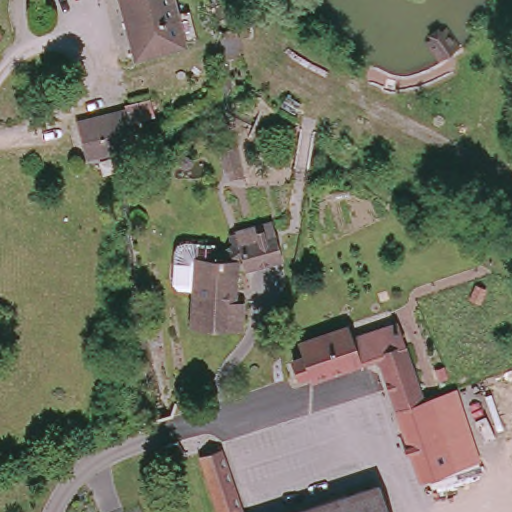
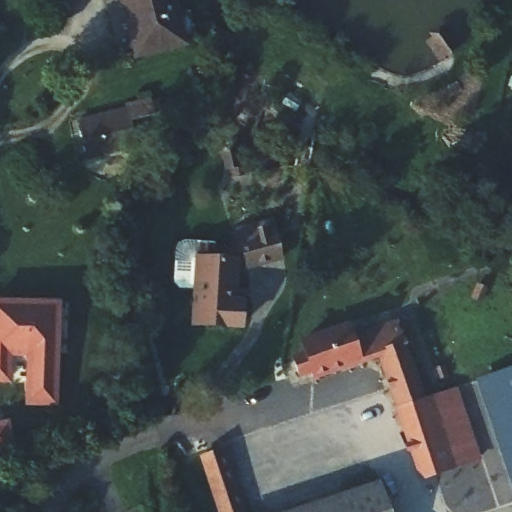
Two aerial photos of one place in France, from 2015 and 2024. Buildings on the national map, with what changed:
unchanged [(133,56),(118,0),(169,0),(181,44),(133,56)]
unchanged [(128,109),(137,147),(86,158),(78,120),(128,109)]
unchanged [(247,272),(240,246),(237,235),(271,226),(274,236),(281,263),(247,272)]
unchanged [(236,265),(233,303),(242,304),(241,331),(192,329),(196,264),(236,265)]
new [(57,395),(50,395),(50,408),(24,407),(25,373),(31,373),(31,352),(7,353),(6,380),(0,380),(0,299),(60,300),(57,395)]
unchanged [(309,380),(307,375),(297,378),(292,361),(303,358),(299,342),(346,327),(350,338),(404,321),(409,336),(396,340),(398,349),(410,345),(426,397),(455,388),(476,457),(419,476),(381,361),(309,380)]
new [(512,496),(489,423),(477,382),(487,379),(512,371),(512,496)]
unchanged [(218,440),(242,512),(221,512),(199,446),(218,440)]
unchanged [(258,508),(324,488),(373,472),(385,512),(247,512),(258,508)]

